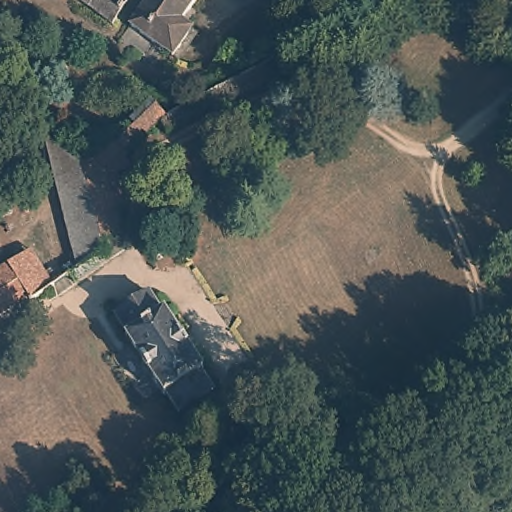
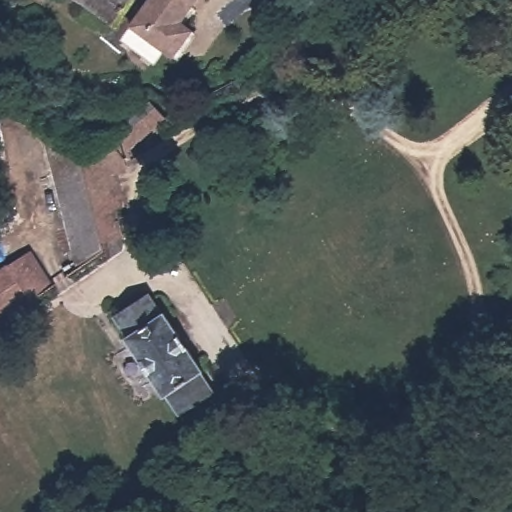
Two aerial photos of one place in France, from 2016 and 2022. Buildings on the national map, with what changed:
unchanged [(109,30),(69,0),(131,0),(114,24),(109,30)]
unchanged [(188,33),(171,55),(141,34),(158,10),(164,13),(175,1),(175,0),(195,0),(176,25),(188,33)]
unchanged [(120,158),(122,170),(114,176),(120,202),(107,205),(115,239),(95,243),(75,157),(105,149),(135,127),(132,121),(154,102),(167,120),(120,158)]
unchanged [(66,262),(36,126),(74,152),(75,157),(95,243),(97,255),(91,256),(94,269),(59,277),(55,266),(66,262)]
unchanged [(22,300),(0,311),(0,270),(8,265),(22,300)]
unchanged [(124,347),(129,342),(116,323),(126,316),(152,299),(164,315),(167,312),(209,371),(204,375),(215,391),(181,417),(169,402),(164,404),(135,363),(124,347)]

